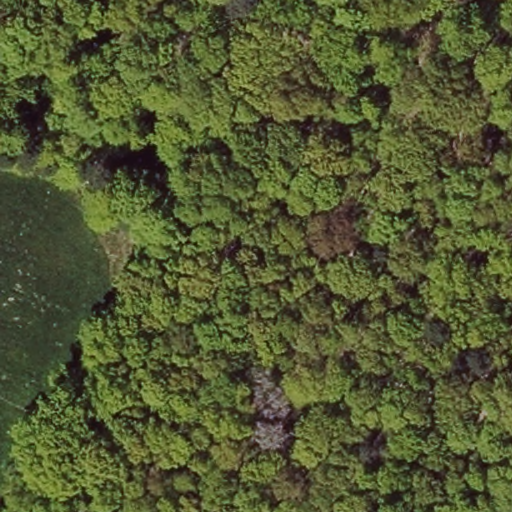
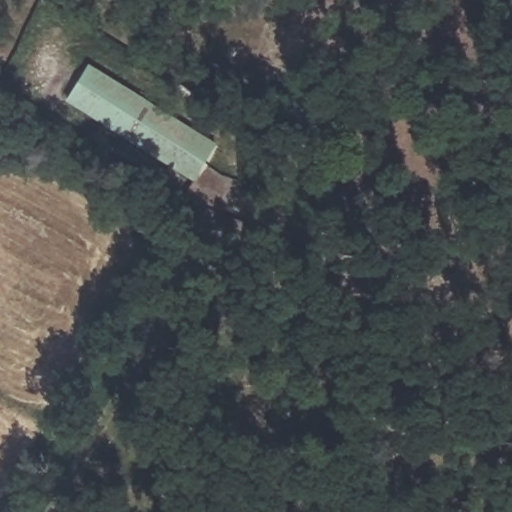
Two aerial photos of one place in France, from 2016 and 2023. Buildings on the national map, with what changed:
new [(92,65),(221,147),(197,184),(68,102),(92,65)]

